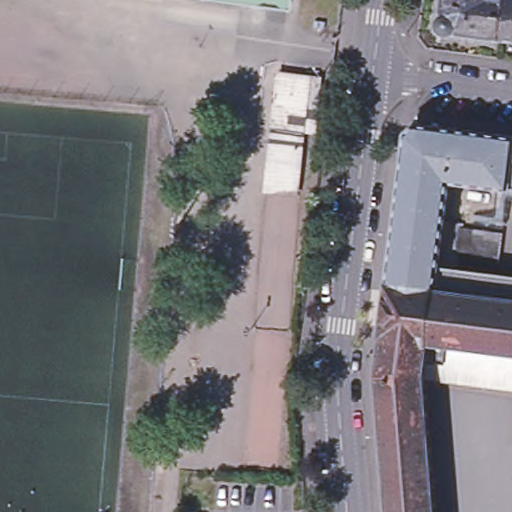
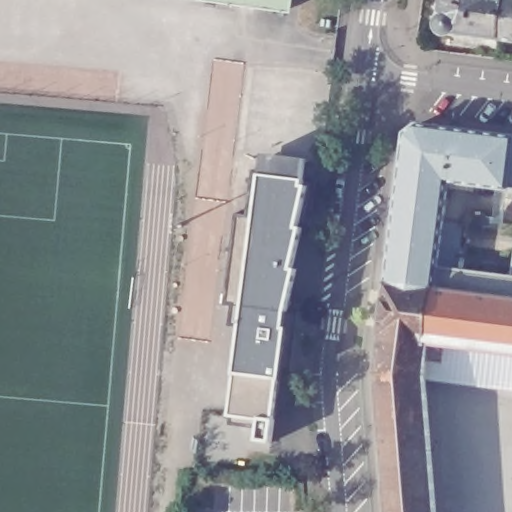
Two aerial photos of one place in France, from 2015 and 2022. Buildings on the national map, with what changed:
unchanged [(286,11),(202,0),(287,0),(286,11)]
unchanged [(499,39),(454,33),(441,16),(443,0),(504,0),(499,39)]
unchanged [(499,39),(504,0),(512,0),(512,41),(499,39)]
demolished [(318,76),(313,112),(301,110),(298,129),(270,125),(278,71),(318,76)]
unchanged [(406,134),(417,124),(512,137),(512,190),(449,182),(438,269),(512,279),(512,354),(447,345),(445,364),(426,362),(424,377),(435,512),(387,512),(376,374),(406,134)]
demolished [(262,189),(268,148),(270,131),(297,134),(295,152),(290,193),(262,189)]
new [(236,373),(262,175),(264,152),(308,157),(306,182),(280,377),(275,419),(272,443),(256,441),(259,419),(231,416),(236,373)]

